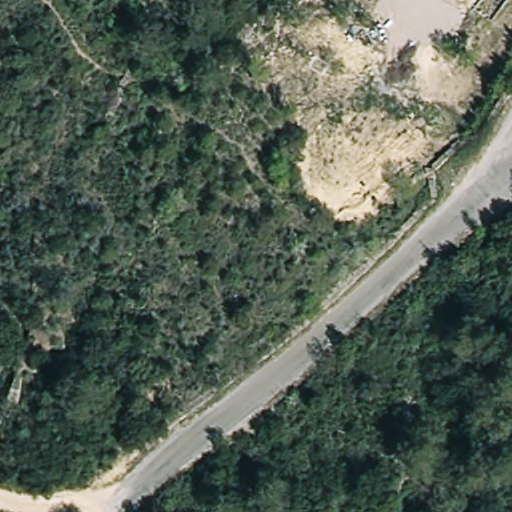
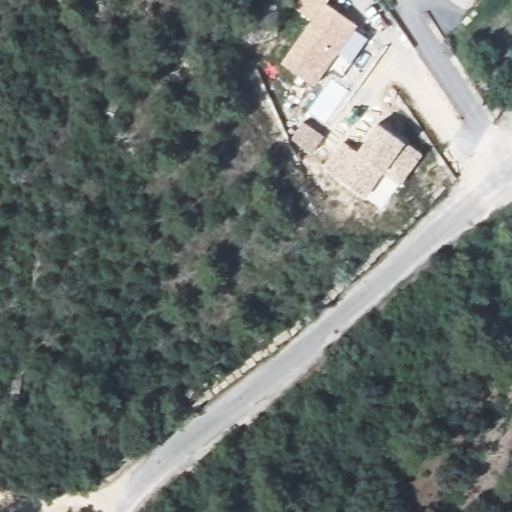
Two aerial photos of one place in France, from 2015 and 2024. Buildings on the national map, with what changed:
new [(296,9),(301,0),(328,0),(326,2),(357,25),(355,29),(368,38),(351,61),(338,52),(314,87),(282,64),(311,19),(296,9)]
new [(357,151),(377,122),(405,141),(423,153),(400,184),(383,172),(366,196),(323,167),(342,141),(357,151)]

